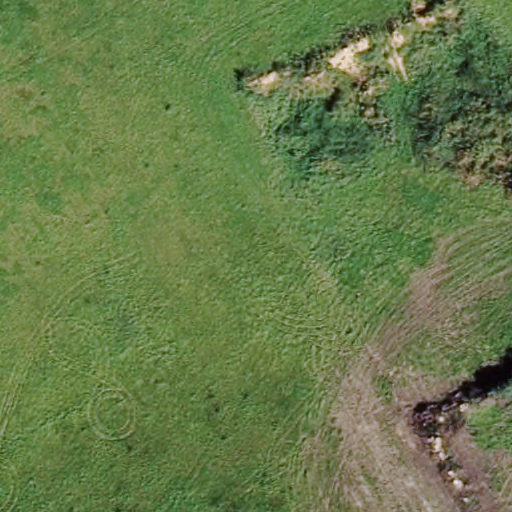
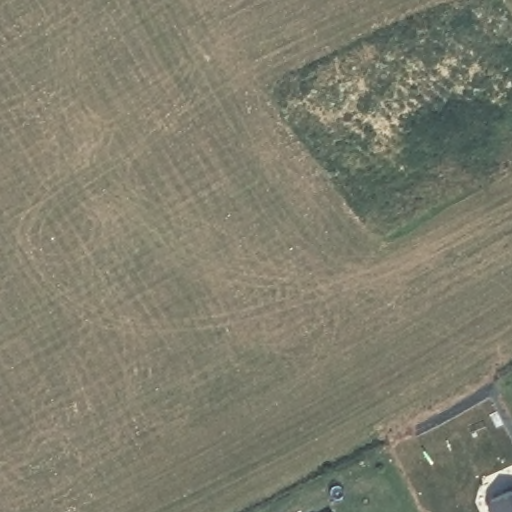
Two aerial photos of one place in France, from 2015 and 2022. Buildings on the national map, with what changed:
new [(512,490),(512,512),(489,512),(485,503),(512,490)]

